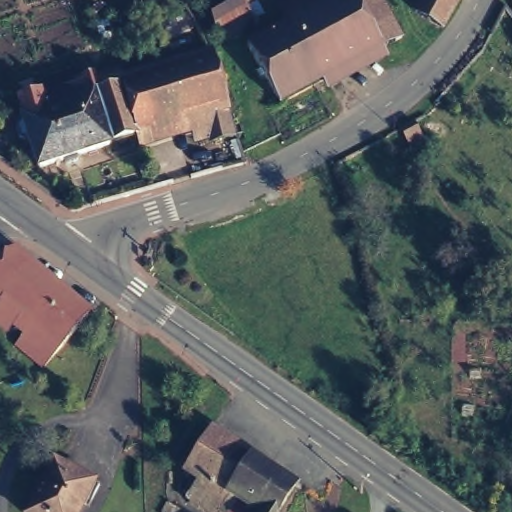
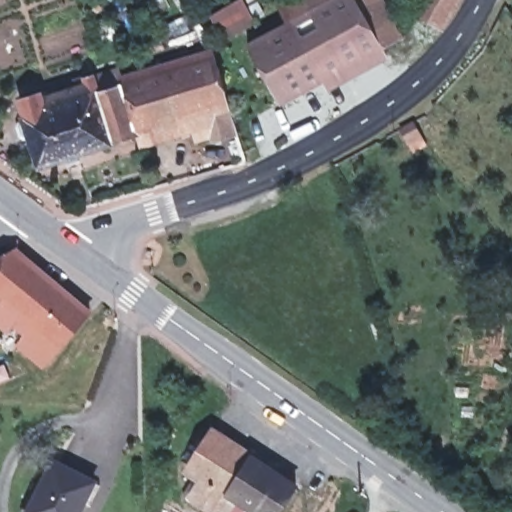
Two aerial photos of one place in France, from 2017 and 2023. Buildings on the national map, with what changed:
unchanged [(252,20),(220,37),(209,14),(232,0),(246,0),(242,2),(252,20)]
unchanged [(269,9),(284,0),(371,0),(395,42),(276,107),(242,49),(280,27),(269,9)]
unchanged [(418,0),(449,0),(437,25),(413,12),(418,0)]
unchanged [(210,141),(209,137),(194,140),(187,120),(135,135),(135,132),(106,140),(107,143),(35,164),(16,99),(37,92),(39,97),(82,84),(81,77),(90,74),(115,66),(120,76),(211,49),(230,107),(224,109),(231,133),(210,141)]
unchanged [(412,126),(419,138),(406,145),(399,132),(412,126)]
unchanged [(90,312),(42,367),(17,344),(32,325),(20,315),(7,331),(0,325),(0,300),(2,298),(0,297),(0,259),(15,252),(90,312)]
unchanged [(195,482),(181,474),(206,433),(290,489),(275,512),(218,512),(215,511),(215,512),(202,512),(184,501),(195,482)]
unchanged [(22,510),(47,457),(87,477),(70,512),(27,512),(22,510)]

